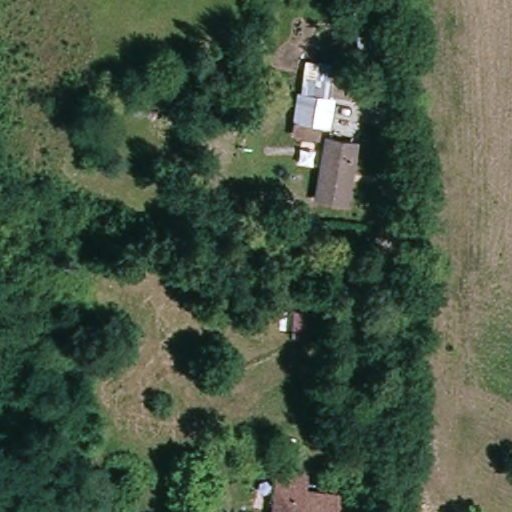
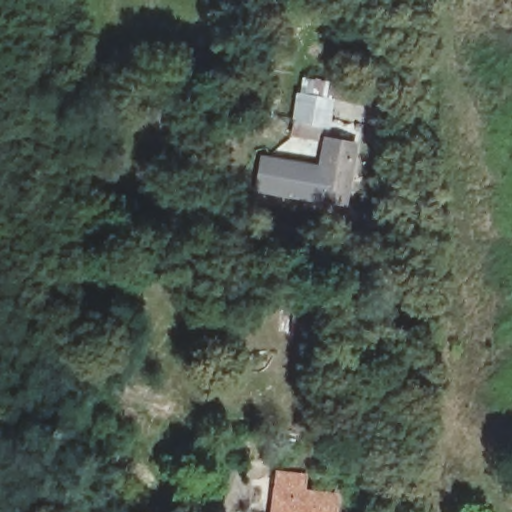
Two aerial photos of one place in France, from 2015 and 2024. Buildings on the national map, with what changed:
unchanged [(331,135),(356,143),(346,205),(317,197),(320,142),(293,136),(302,69),(337,82),(331,135)]
new [(317,197),(321,198),(320,204),(255,193),(260,155),(318,165),(317,197)]
unchanged [(287,475),(327,478),(326,495),(337,495),(335,512),(284,512),(287,475)]

